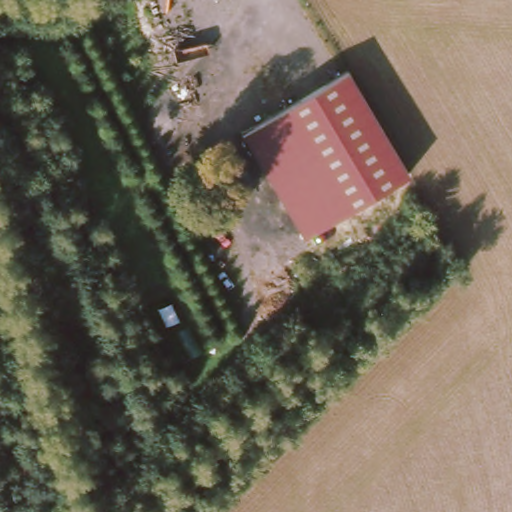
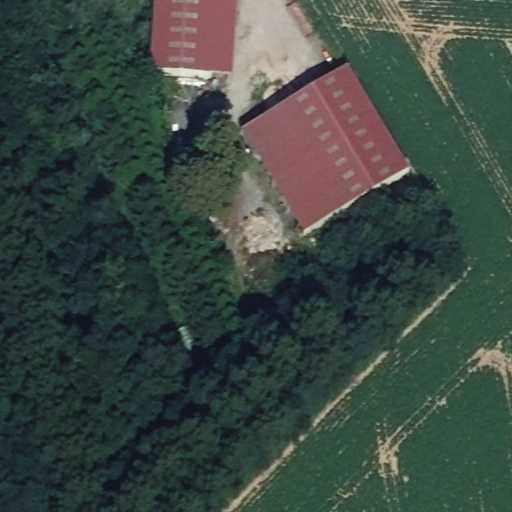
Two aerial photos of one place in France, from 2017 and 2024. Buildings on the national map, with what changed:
new [(152,73),(156,0),(240,0),(237,77),(152,73)]
unchanged [(242,135),(346,73),(407,175),(302,236),(242,135)]

